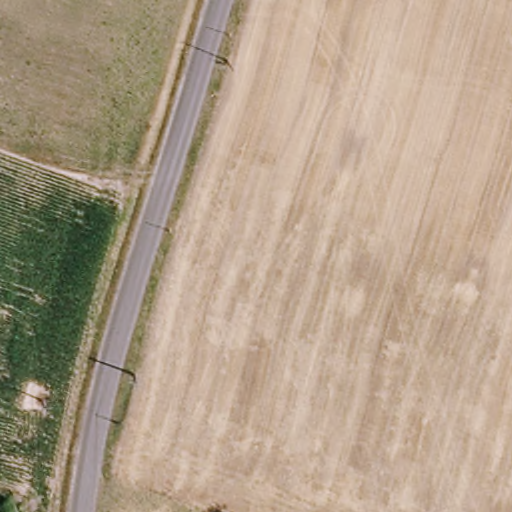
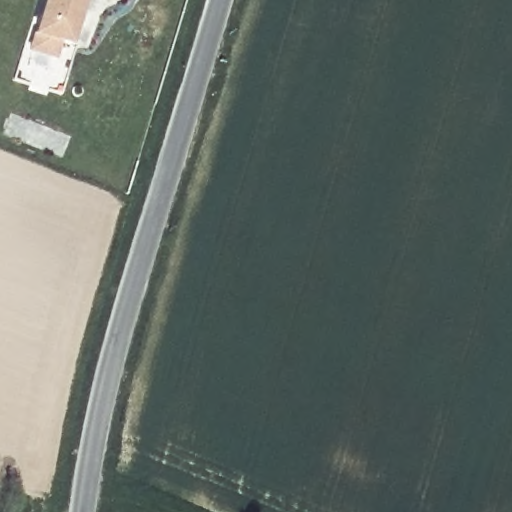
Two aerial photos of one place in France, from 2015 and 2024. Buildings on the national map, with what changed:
new [(85,0),(72,44),(62,41),(58,57),(33,50),(48,0),(85,0)]

